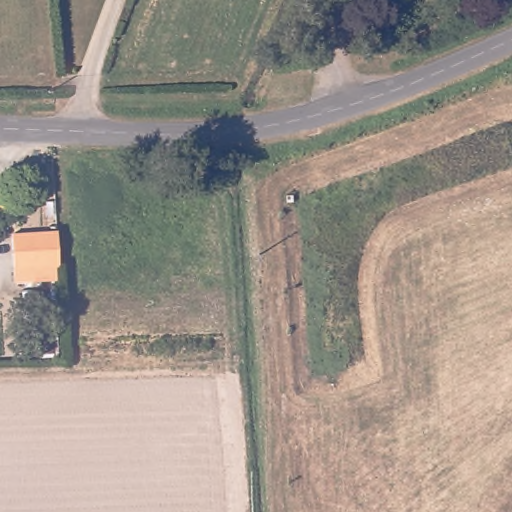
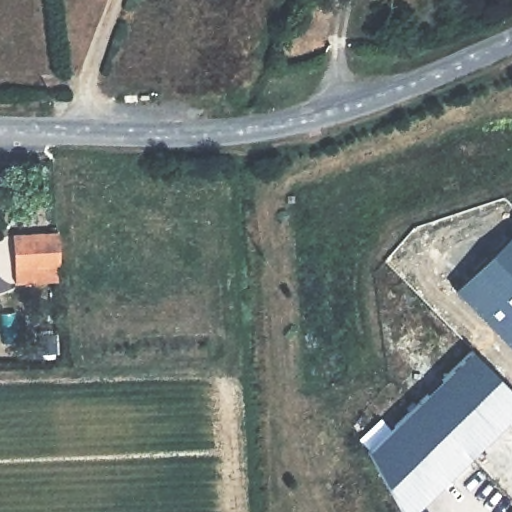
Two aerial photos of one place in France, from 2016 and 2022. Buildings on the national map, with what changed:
unchanged [(35,273),(36,287),(18,287),(14,239),(59,236),(62,272),(35,273)]
new [(512,390),(512,406),(493,425),(441,372),(468,346),(512,390)]
new [(441,372),(493,425),(405,512),(396,512),(361,449),(441,372)]

